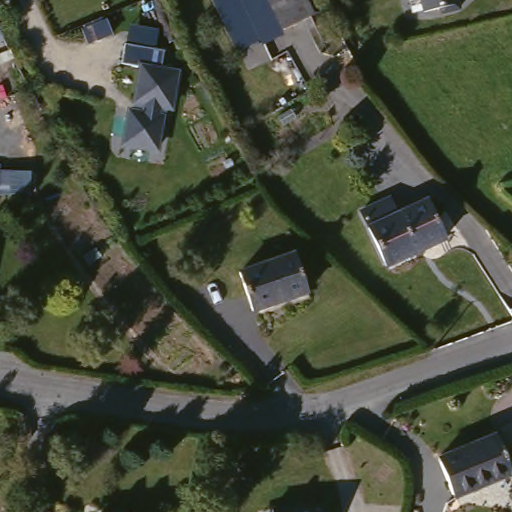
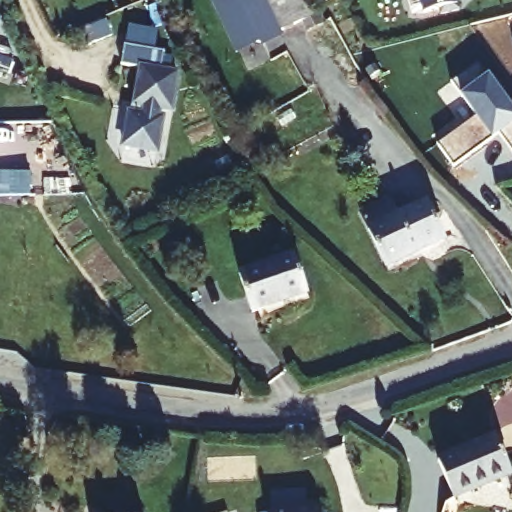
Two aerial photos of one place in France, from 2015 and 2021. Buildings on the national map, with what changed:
unchanged [(236,52),(212,0),(262,0),(280,38),(236,52)]
unchanged [(313,22),(280,38),(262,0),(302,0),(313,22)]
unchanged [(409,0),(456,0),(458,10),(440,14),(440,9),(423,14),(423,11),(412,14),(409,0)]
unchanged [(155,54),(124,48),(127,25),(160,30),(155,54)]
unchanged [(174,77),(168,112),(158,111),(157,121),(160,121),(154,154),(121,148),(127,115),(139,117),(140,108),(133,106),(139,71),(120,68),(124,48),(162,55),(159,75),(174,77)]
new [(512,105),(512,152),(500,134),(454,166),(438,144),(476,117),(460,96),(461,95),(452,82),(480,63),(510,106),(512,105)]
unchanged [(30,197),(0,195),(0,170),(32,171),(30,197)]
unchanged [(392,225),(420,213),(438,252),(384,279),(363,237),(356,221),(385,209),(392,225)]
unchanged [(283,259),(300,301),(248,319),(234,278),(283,259)]
unchanged [(487,432),(505,461),(451,493),(432,465),(487,432)]
unchanged [(320,512),(271,512),(272,502),(320,509),(320,512)]
unchanged [(146,511),(146,512),(99,512),(100,505),(146,511)]

